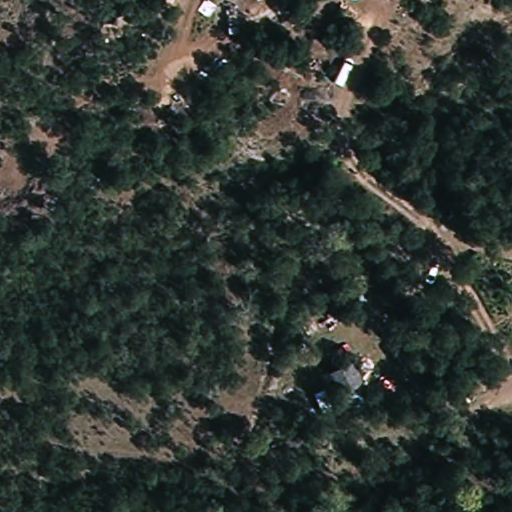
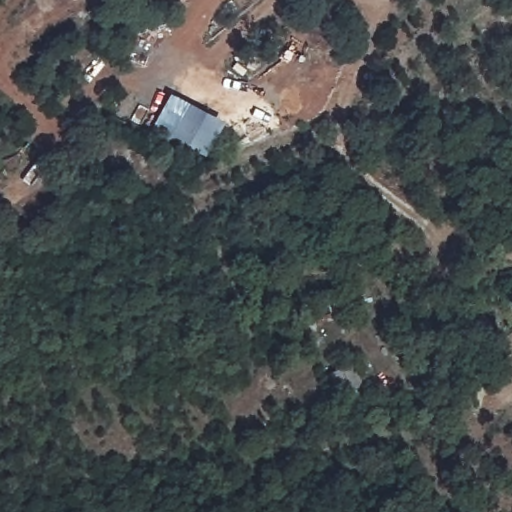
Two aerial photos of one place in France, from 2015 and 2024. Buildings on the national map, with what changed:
new [(222,122),(206,157),(168,139),(187,103),(222,122)]

